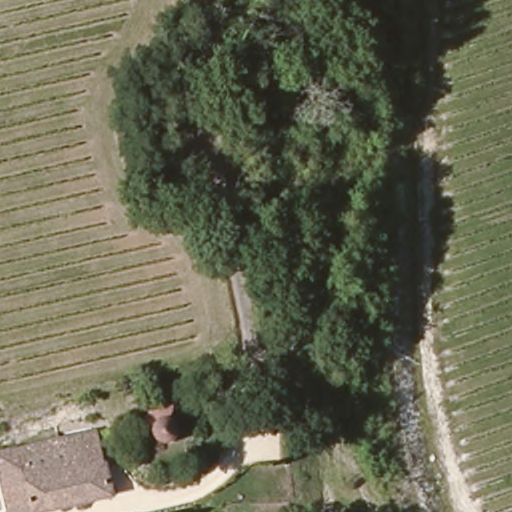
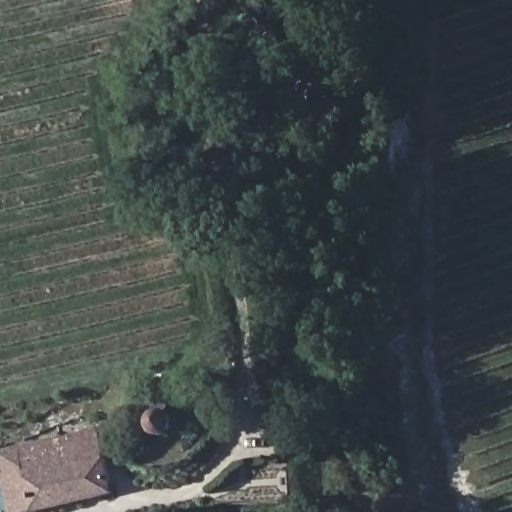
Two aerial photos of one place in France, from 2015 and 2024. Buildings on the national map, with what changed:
unchanged [(181,422),(184,427),(183,433),(178,439),(173,442),(167,442),(162,442),(160,440),(157,435),(154,430),(141,427),(145,416),(151,409),(161,403),(173,401),(174,413),(181,422)]
unchanged [(16,448),(98,427),(115,491),(34,512),(32,512),(16,448)]
unchanged [(32,512),(9,512),(0,474),(0,470),(1,469),(0,464),(0,452),(16,448),(32,512)]

